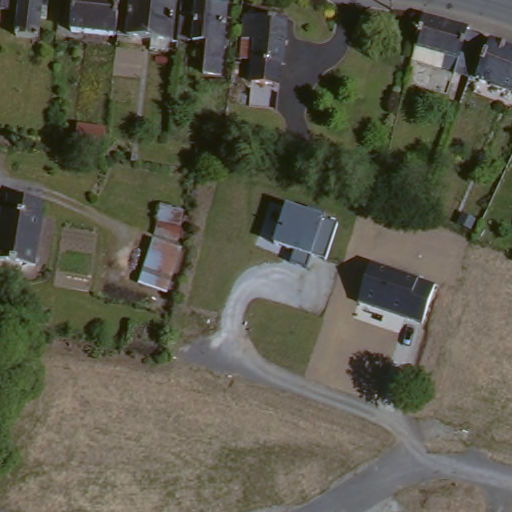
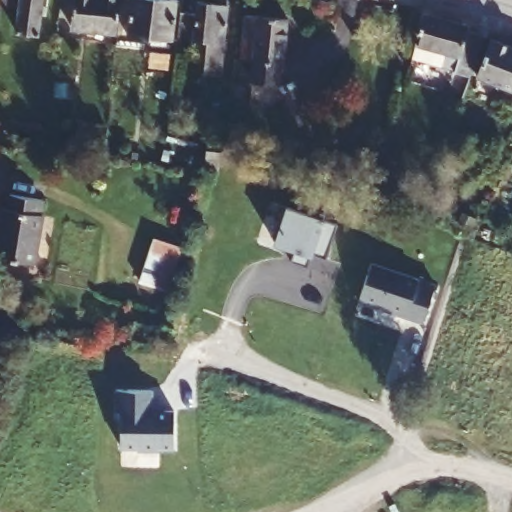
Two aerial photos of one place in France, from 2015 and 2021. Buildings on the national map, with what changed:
unchanged [(0,1),(0,0),(1,0),(1,1),(0,1)]
unchanged [(6,1),(6,0),(21,0),(21,4),(6,1)]
unchanged [(21,29),(25,0),(47,0),(44,31),(21,29)]
unchanged [(125,0),(121,34),(76,29),(80,0),(125,0)]
unchanged [(178,41),(131,36),(132,31),(124,31),(127,0),(173,0),(183,1),(178,41)]
unchanged [(226,76),(209,74),(213,43),(199,41),(199,40),(183,38),(185,16),(186,14),(201,16),(203,3),(234,6),(226,76)]
unchanged [(464,23),(463,26),(476,30),(481,31),(466,72),(463,71),(450,68),(451,65),(407,53),(419,10),(464,23)]
unchanged [(244,34),(246,11),(289,15),(284,60),(281,60),(279,80),(251,78),(255,35),(244,34)]
unchanged [(473,73),(487,36),(512,45),(512,88),(473,73)]
unchanged [(103,150),(76,146),(79,124),(106,129),(103,150)]
unchanged [(220,154),(218,173),(204,171),(208,151),(220,154)]
unchanged [(45,261),(4,254),(13,204),(16,205),(19,190),(53,196),(50,211),(54,211),(45,261)]
unchanged [(326,219),(339,225),(326,261),(311,256),(308,268),(290,263),(294,252),(274,245),(288,205),(326,219)]
unchanged [(155,240),(182,250),(168,292),(141,283),(155,240)]
unchanged [(421,279),(419,281),(437,287),(424,325),(359,303),(371,263),(421,279)]
new [(150,393),(151,413),(173,413),(174,450),(160,450),(160,453),(137,454),(137,451),(121,452),(120,415),(115,415),(115,394),(150,393)]

